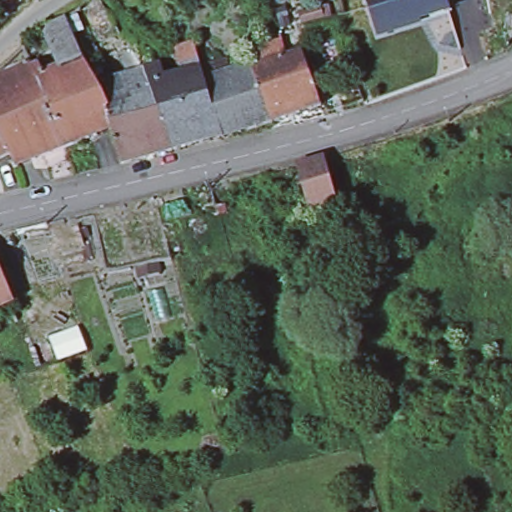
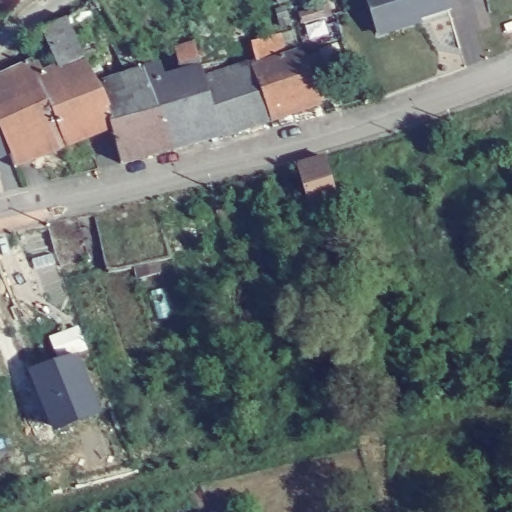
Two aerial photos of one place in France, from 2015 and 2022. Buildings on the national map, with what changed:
unchanged [(431,14),(416,19),(417,21),(379,34),(368,0),(443,0),(446,9),(431,14)]
unchanged [(98,1),(120,38),(81,55),(66,22),(98,1)]
unchanged [(95,52),(108,47),(115,64),(103,69),(109,83),(128,77),(118,59),(134,51),(144,72),(159,67),(164,81),(181,77),(175,59),(179,57),(177,50),(193,45),(201,71),(204,82),(222,139),(171,154),(121,167),(111,132),(65,151),(42,160),(15,171),(9,156),(0,134),(0,82),(31,66),(23,49),(44,31),(66,22),(81,55),(84,62),(89,72),(101,66),(95,52)]
unchanged [(255,66),(251,45),(278,39),(286,61),(302,55),(321,108),(309,112),(272,125),(251,68),(255,66)]
unchanged [(251,68),(272,125),(223,141),(222,139),(204,82),(251,68)]
unchanged [(0,161),(0,134),(9,156),(0,161)]
unchanged [(324,156),(337,200),(308,207),(296,165),(324,156)]
unchanged [(216,201),(220,212),(209,215),(207,209),(206,205),(216,201)]
demolished [(0,301),(0,271),(10,296),(0,301)]
new [(96,412),(54,428),(32,371),(52,365),(53,367),(74,358),(96,412)]

